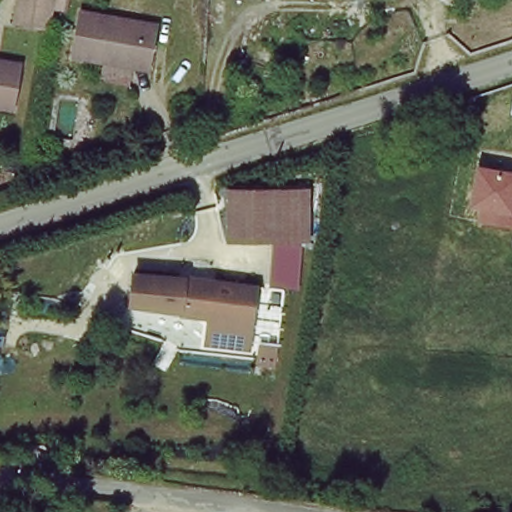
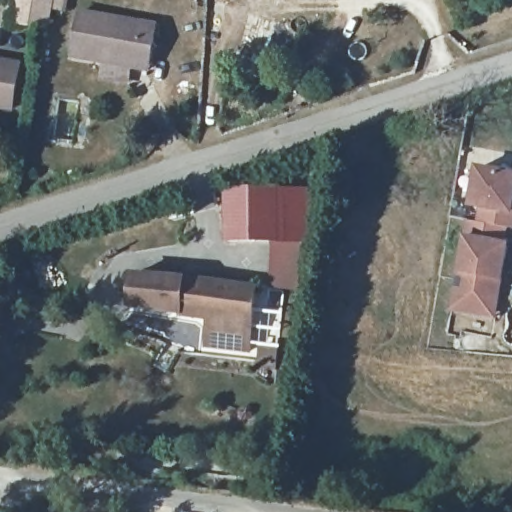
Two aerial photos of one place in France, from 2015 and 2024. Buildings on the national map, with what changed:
unchanged [(50,22),(16,16),(19,0),(53,0),(50,22)]
unchanged [(108,80),(111,59),(109,59),(75,54),(82,10),(159,21),(153,60),(153,66),(136,63),(133,84),(108,80)]
unchanged [(22,63),(16,107),(0,105),(0,60),(22,63)]
unchanged [(480,208),(469,206),(477,166),(512,173),(512,229),(477,221),(480,208)]
unchanged [(302,192),(301,239),(270,239),(268,240),(227,239),(230,191),(302,192)]
new [(511,228),(509,242),(503,281),(497,319),(452,312),(457,274),(463,234),(469,219),(477,221),(511,228)]
unchanged [(210,317),(132,307),(137,273),(260,287),(250,350),(205,344),(210,317)]
unchanged [(264,348),(279,350),(276,368),(258,366),(260,351),(260,349),(260,348),(264,348)]
unchanged [(28,465),(25,465),(28,446),(46,449),(55,450),(52,469),(28,465)]

